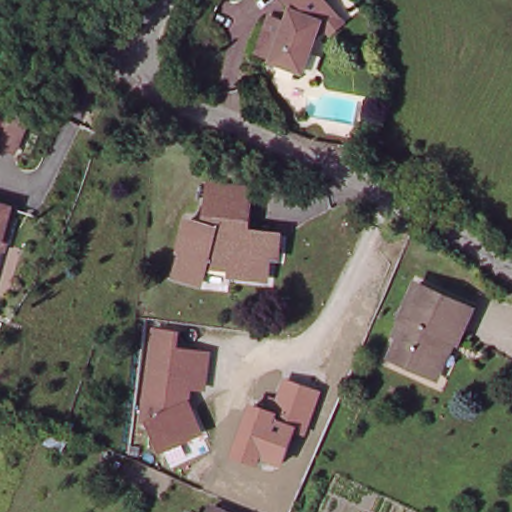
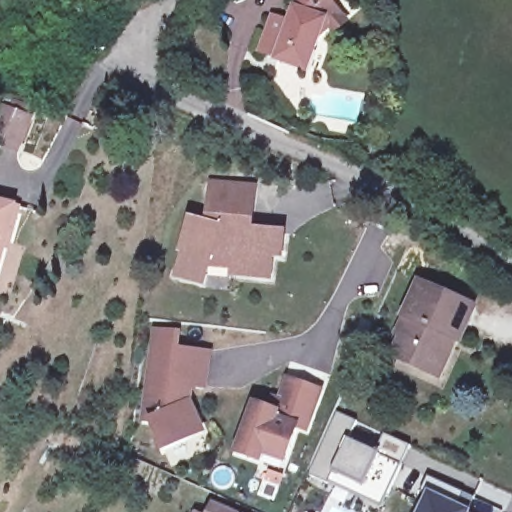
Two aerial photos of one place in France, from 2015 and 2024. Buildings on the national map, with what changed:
unchanged [(337,33),(336,31),(332,27),(324,35),(311,75),(281,67),(281,63),(265,59),(274,24),(300,30),(303,20),(300,15),(302,12),(298,10),(289,0),(328,0),(338,11),(348,23),(337,33)]
unchanged [(35,116),(20,159),(0,152),(0,108),(2,105),(35,116)]
unchanged [(285,254),(276,253),(272,273),(238,270),(239,265),(216,262),(210,277),(182,275),(188,251),(181,250),(188,216),(212,219),(213,208),(208,207),(209,180),(256,184),(255,211),(244,210),(242,224),(288,227),(285,254)]
unchanged [(21,205),(10,241),(5,240),(0,254),(0,199),(21,205)]
unchanged [(424,370),(390,354),(409,314),(403,310),(418,277),(471,300),(455,335),(436,375),(424,370)]
unchanged [(180,331),(178,345),(210,347),(206,391),(191,390),(190,403),(204,435),(159,450),(146,418),(140,418),(157,327),(180,331)]
unchanged [(322,390),(306,435),(294,432),(282,465),(264,458),(259,466),(252,464),(232,455),(251,402),(273,411),(285,378),(322,390)]
new [(309,475),(337,413),(357,421),(348,440),(377,452),(385,435),(410,446),(381,507),(328,483),(309,475)]
new [(421,491),(428,476),(474,500),(469,510),(472,512),(419,512),(427,495),(421,491)]
unchanged [(242,512),(205,512),(213,498),(242,512)]

